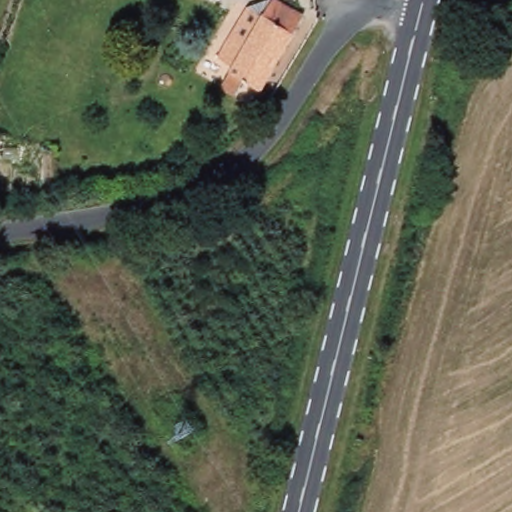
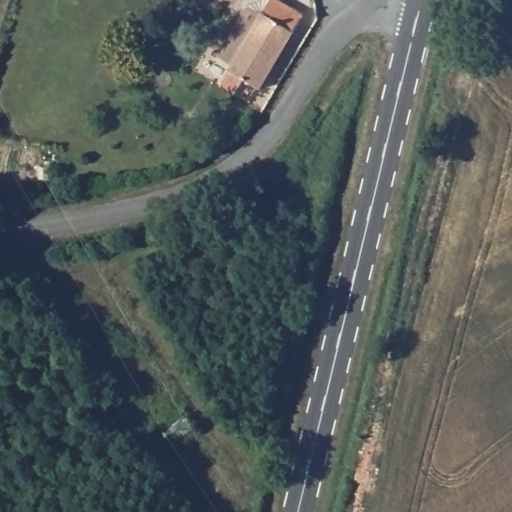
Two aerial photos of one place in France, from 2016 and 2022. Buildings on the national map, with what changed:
unchanged [(265,14),(275,0),(281,0),(306,16),(258,87),(249,80),(240,92),(222,80),(234,61),(220,51),(251,5),(265,14)]

